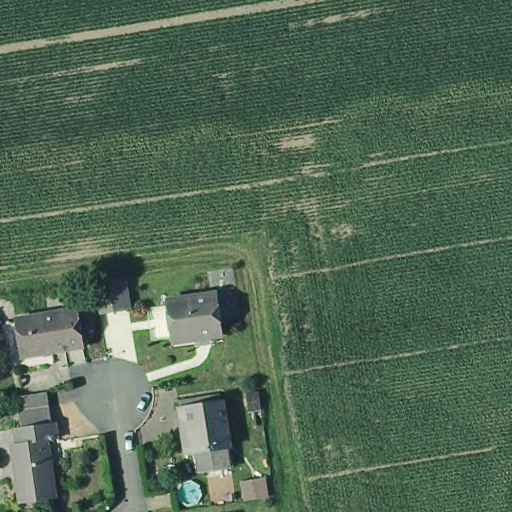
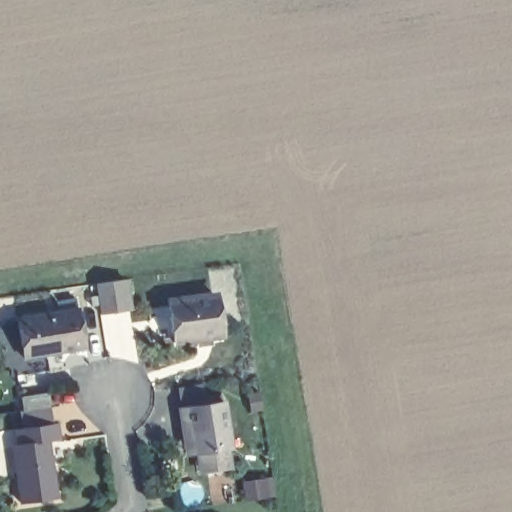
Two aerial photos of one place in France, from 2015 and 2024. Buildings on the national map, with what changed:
unchanged [(123,280),(128,309),(98,314),(93,284),(123,280)]
unchanged [(221,305),(223,305),(226,326),(177,333),(171,291),(218,284),(221,305)]
unchanged [(85,304),(92,342),(31,352),(25,315),(85,304)]
unchanged [(15,441),(20,440),(18,425),(26,423),(23,406),(25,405),(23,392),(51,388),(53,401),(52,401),(55,419),(60,419),(62,434),(51,435),(60,493),(23,498),(15,441)]
unchanged [(182,432),(177,403),(221,397),(228,442),(191,448),(185,449),(182,432)]

